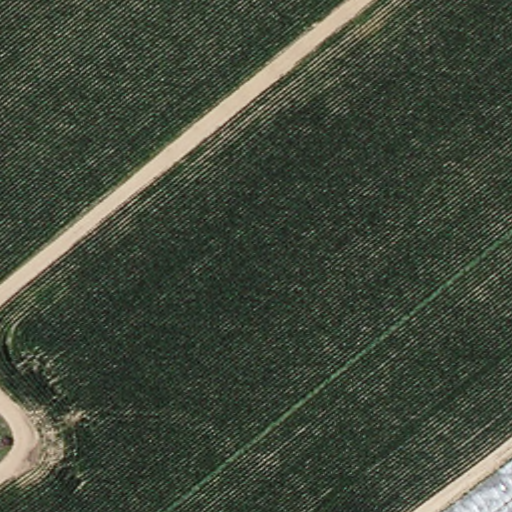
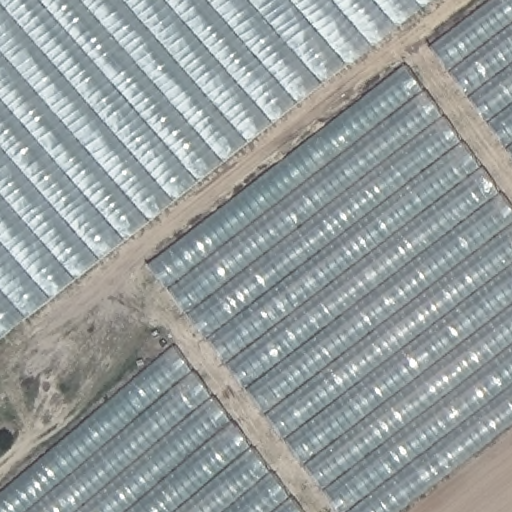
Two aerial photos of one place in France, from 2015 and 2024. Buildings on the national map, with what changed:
new [(0,341),(0,0),(432,0),(0,341)]
demolished [(331,77),(432,0),(512,0),(512,305),(331,77)]
new [(492,0),(512,0),(512,157),(430,48),(492,0)]
new [(512,210),(512,425),(399,512),(339,512),(150,264),(406,67),(512,210)]
new [(300,512),(0,512),(0,494),(174,348),(300,512)]
new [(444,512),(512,461),(512,512),(444,512)]

